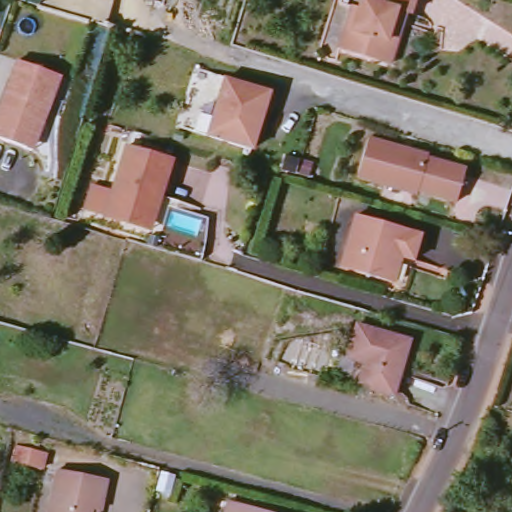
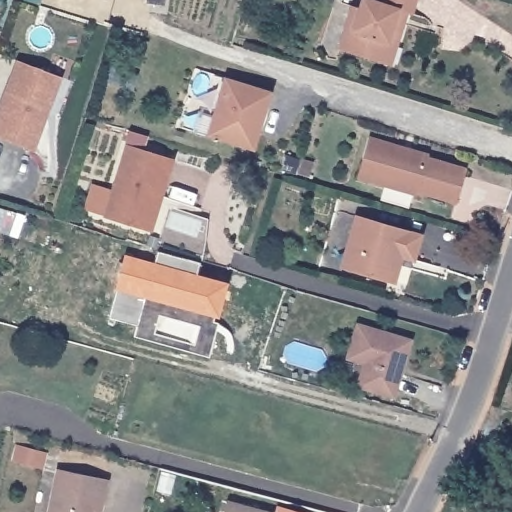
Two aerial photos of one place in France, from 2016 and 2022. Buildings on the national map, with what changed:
unchanged [(410,15),(395,10),(392,21),(401,24),(395,45),(400,47),(393,67),(388,66),(377,62),(337,50),(351,7),(357,10),(361,0),(365,0),(373,2),(374,0),(414,0),(410,15)]
unchanged [(26,147),(0,138),(0,102),(4,91),(15,59),(45,70),(59,75),(54,88),(48,105),(47,107),(31,149),(26,147)]
unchanged [(270,95),(261,124),(253,152),(209,140),(217,111),(225,81),(270,95)]
unchanged [(462,182),(456,204),(417,192),(416,196),(357,179),(364,154),(368,139),(428,155),(427,159),(465,170),(462,182)]
unchanged [(145,226),(108,215),(88,209),(95,187),(115,194),(128,150),(174,162),(160,205),(152,228),(145,226)]
unchanged [(306,167),(302,180),(291,176),(294,167),(295,163),(306,167)]
unchanged [(340,253),(351,220),(415,238),(408,262),(394,259),(386,284),(350,275),(335,269),(340,253)]
new [(115,287),(123,254),(153,264),(157,253),(200,262),(198,275),(228,283),(220,321),(115,287)]
unchanged [(357,384),(361,361),(344,354),(353,323),(407,337),(393,394),(357,384)]
unchanged [(47,452),(44,466),(25,463),(27,448),(47,452)]
unchanged [(109,480),(102,512),(54,512),(63,472),(109,480)]
unchanged [(276,511),(276,512),(231,512),(235,501),(276,511)]

